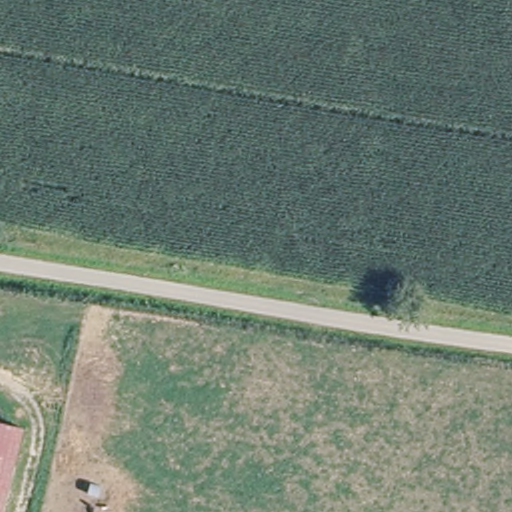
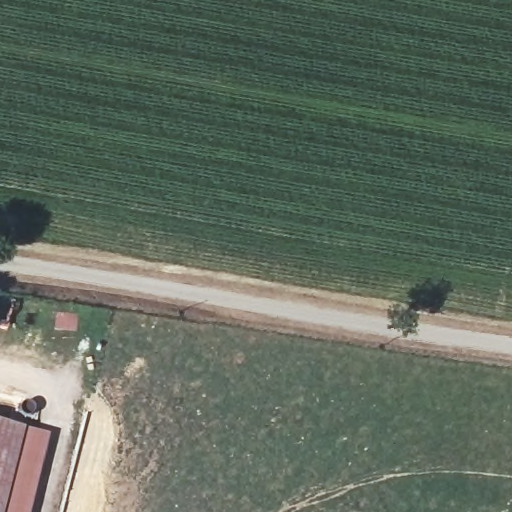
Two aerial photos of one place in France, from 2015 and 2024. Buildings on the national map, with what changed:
unchanged [(27,430),(6,512),(0,512),(0,424),(27,430)]
new [(28,512),(6,512),(27,430),(47,437),(28,512)]

